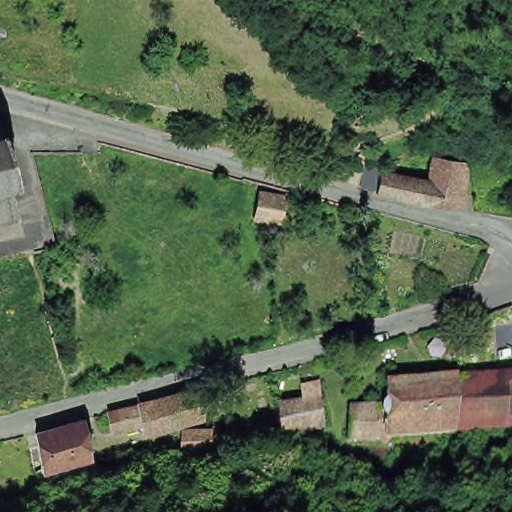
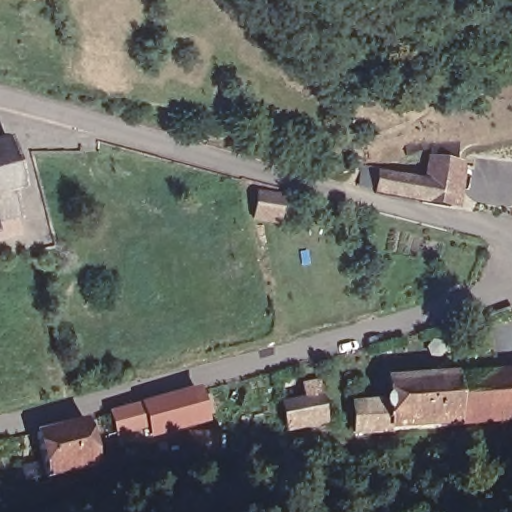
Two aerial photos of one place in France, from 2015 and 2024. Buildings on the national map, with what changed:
unchanged [(431,177),(435,150),(439,131),(465,136),(465,137),(462,156),(455,203),(428,198),(382,187),(385,167),(431,177)]
unchanged [(5,187),(12,216),(0,219),(0,135),(13,185),(5,187)]
unchanged [(257,195),(283,196),(280,221),(254,220),(257,195)]
unchanged [(465,371),(512,368),(512,418),(468,421),(465,371)]
unchanged [(465,371),(468,421),(365,427),(366,401),(395,400),(396,398),(397,396),(398,394),(397,375),(464,371),(465,371)]
unchanged [(307,395),(305,380),(320,377),(327,417),(287,424),(282,400),(307,395)]
unchanged [(213,387),(221,416),(165,431),(157,402),(213,387)]
unchanged [(151,403),(157,423),(133,429),(128,410),(151,403)]
unchanged [(86,416),(97,460),(49,472),(37,429),(86,416)]
unchanged [(234,429),(235,450),(204,450),(204,430),(234,429)]

